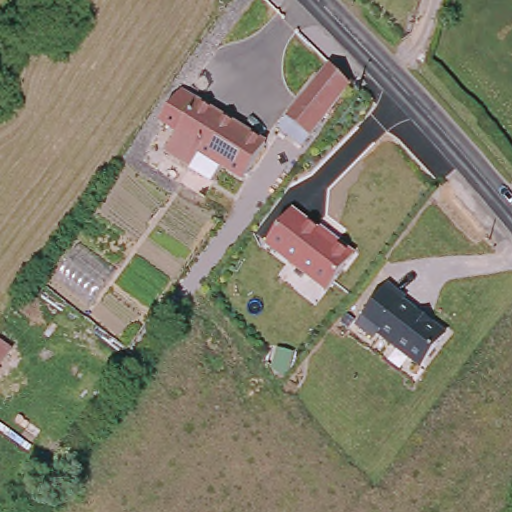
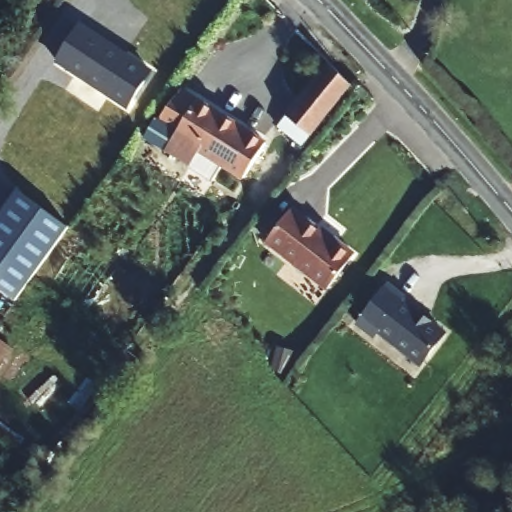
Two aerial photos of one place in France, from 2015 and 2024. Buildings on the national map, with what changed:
new [(148,65),(122,99),(55,47),(80,13),(148,65)]
unchanged [(280,126),(331,62),(351,85),(304,145),(280,126)]
unchanged [(164,140),(177,122),(165,112),(182,89),(265,151),(241,184),(202,154),(196,162),(164,140)]
new [(14,300),(0,290),(0,214),(17,191),(67,227),(14,300)]
unchanged [(337,236),(335,239),(352,253),(327,282),(267,232),(295,201),(337,236)]
unchanged [(407,295),(405,297),(447,332),(420,363),(380,329),(374,336),(357,321),(391,282),(407,295)]
unchanged [(17,351),(0,370),(0,337),(17,351)]

